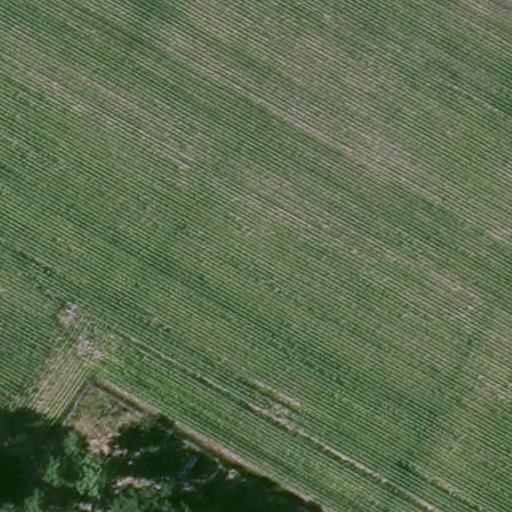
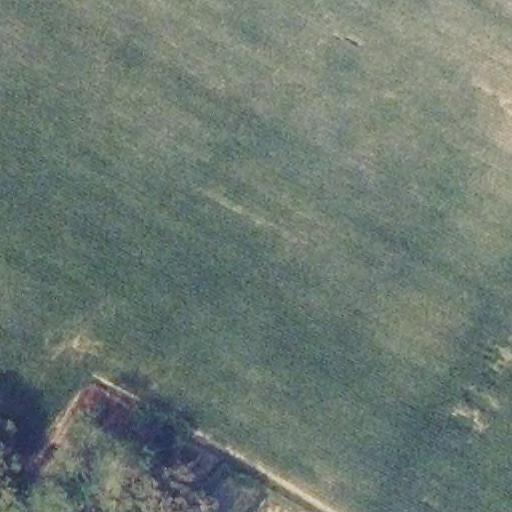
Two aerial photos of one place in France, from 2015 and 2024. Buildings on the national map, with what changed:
[]

